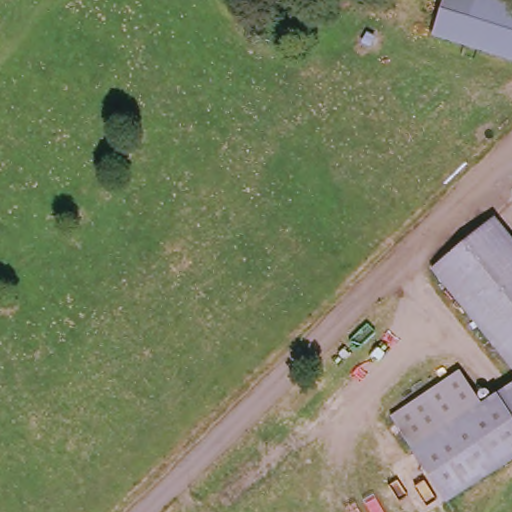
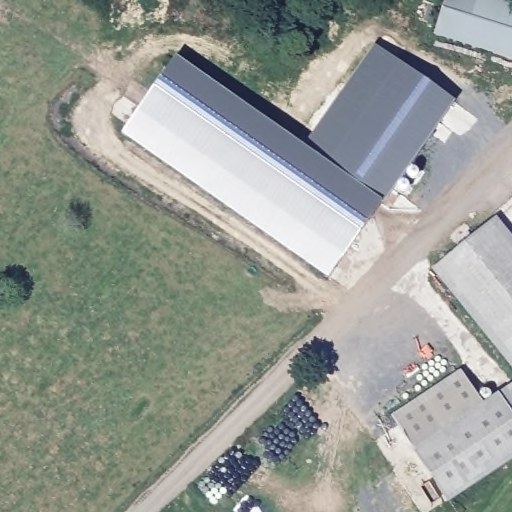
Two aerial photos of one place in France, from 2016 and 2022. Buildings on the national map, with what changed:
unchanged [(436,34),(449,0),(494,0),(512,7),(512,63),(436,34)]
new [(176,58),(381,201),(328,277),(123,133),(176,58)]
unchanged [(474,244),(501,223),(512,238),(512,302),(474,244)]
unchanged [(439,271),(474,244),(512,302),(512,367),(439,271)]
unchanged [(448,387),(468,375),(487,408),(484,410),(475,415),(419,450),(399,416),(448,387)]
unchanged [(475,415),(484,410),(487,408),(512,392),(512,455),(475,415)]
unchanged [(452,504),(419,450),(475,415),(512,455),(512,465),(452,504)]

